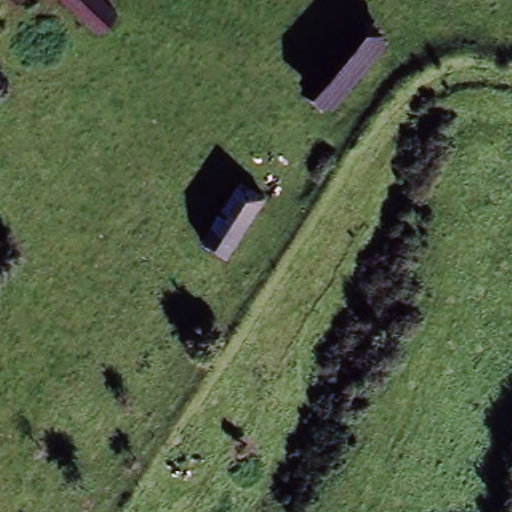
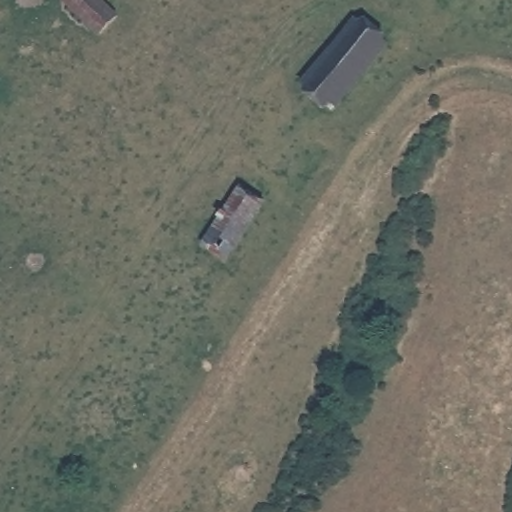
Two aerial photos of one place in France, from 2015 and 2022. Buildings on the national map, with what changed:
unchanged [(54,11),(61,0),(86,0),(115,19),(100,40),(54,11)]
unchanged [(355,23),(381,40),(335,103),(310,86),(355,23)]
unchanged [(221,263),(196,248),(235,186),(260,200),(221,263)]

